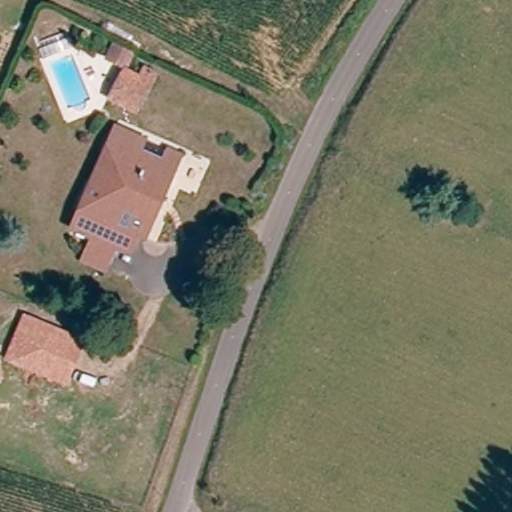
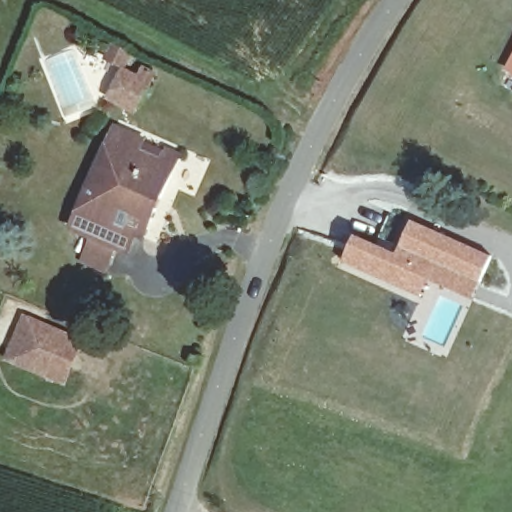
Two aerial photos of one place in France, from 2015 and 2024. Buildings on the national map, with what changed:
unchanged [(140,41),(133,56),(114,48),(120,33),(140,41)]
new [(503,71),(512,55),(512,75),(503,71)]
new [(138,74),(143,65),(159,74),(136,115),(106,100),(125,67),(138,74)]
unchanged [(93,232),(76,226),(121,127),(186,155),(178,175),(153,232),(143,229),(134,251),(118,245),(110,264),(106,262),(99,277),(76,269),(81,253),(93,232)]
new [(343,263),(355,235),(397,253),(412,221),(493,256),(475,300),(430,280),(423,298),(343,263)]
unchanged [(74,375),(18,352),(31,319),(88,342),(74,375)]

